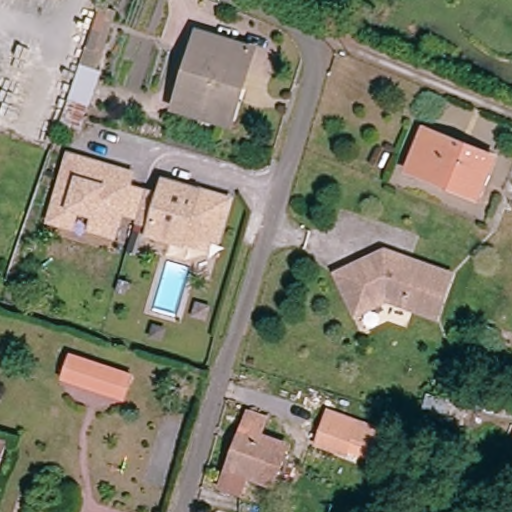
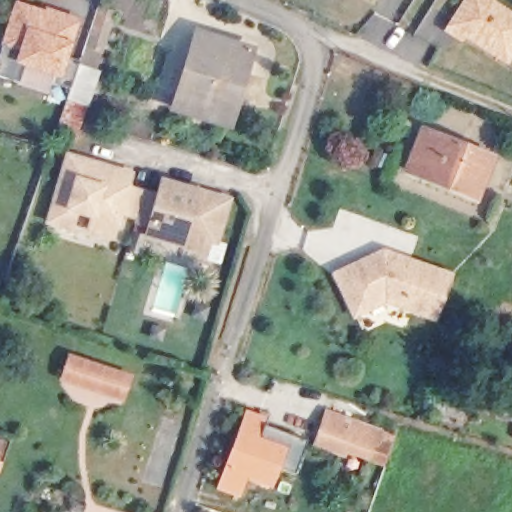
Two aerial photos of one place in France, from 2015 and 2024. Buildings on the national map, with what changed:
unchanged [(59,3),(51,0),(62,0),(59,3)]
new [(508,64),(465,37),(462,42),(444,31),(464,0),(495,0),(512,10),(512,58),(508,64)]
new [(72,45),(61,79),(24,67),(20,81),(0,74),(0,60),(4,47),(0,45),(16,1),(80,20),(72,45)]
new [(118,11),(98,70),(102,71),(81,135),(57,129),(79,62),(82,64),(100,5),(118,11)]
unchanged [(224,127),(175,114),(196,39),(252,54),(242,95),(233,129),(224,127)]
unchanged [(489,164),(474,202),(404,174),(420,136),(489,164)]
unchanged [(137,216),(121,211),(114,235),(90,229),(94,215),(77,211),(72,227),(49,221),(68,154),(132,172),(128,186),(144,190),(137,216)]
unchanged [(148,232),(133,229),(136,219),(136,217),(137,216),(144,190),(159,195),(163,180),(228,199),(216,240),(197,235),(194,246),(182,242),(148,232)]
unchanged [(338,266),(385,244),(451,267),(436,309),(388,292),(357,306),(338,266)]
unchanged [(121,373),(116,388),(68,374),(73,359),(121,373)]
unchanged [(374,441),(346,432),(341,448),(313,440),(323,407),(379,426),(374,441)]
unchanged [(242,477),(236,495),(216,488),(242,416),(262,422),(255,441),(278,449),(265,486),(242,477)]
unchanged [(0,453),(0,430),(6,432),(0,453)]

